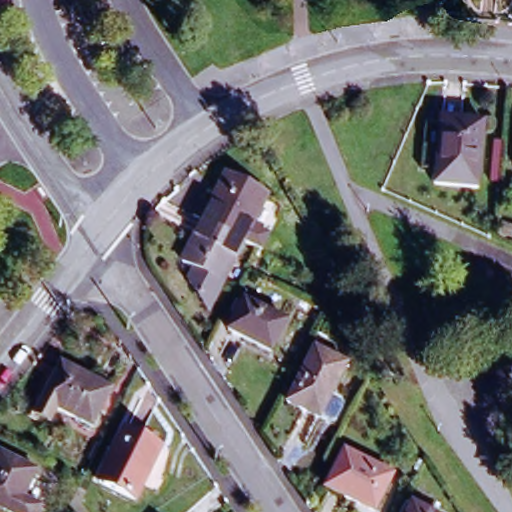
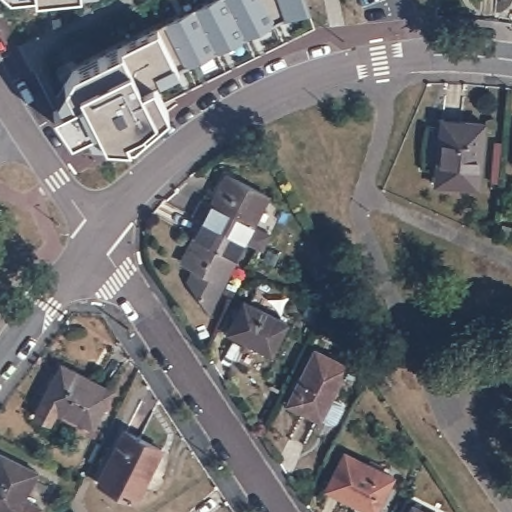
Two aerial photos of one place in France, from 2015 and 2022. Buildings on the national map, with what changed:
new [(284,16),(274,21),(178,69),(152,78),(168,110),(133,139),(128,138),(105,136),(97,120),(70,134),(54,109),(72,99),(63,83),(72,67),(122,44),(157,25),(208,0),(307,0),(310,9),(284,16)]
unchanged [(477,188),(435,183),(440,126),(441,119),(465,121),(482,123),(477,188)]
unchanged [(200,204),(211,210),(227,179),(267,199),(251,230),(268,239),(260,254),(243,246),(233,240),(203,225),(192,220),(200,204)]
unchanged [(235,261),(231,259),(220,282),(224,284),(216,300),(203,309),(187,287),(195,273),(182,267),(203,225),(233,240),(243,246),(235,261)]
unchanged [(270,358),(228,335),(243,305),(286,327),(270,358)]
unchanged [(319,419),(287,403),(314,349),(347,364),(319,419)]
unchanged [(33,416),(40,402),(60,364),(110,390),(92,428),(55,409),(49,423),(33,416)]
unchanged [(135,502),(98,483),(123,431),(161,449),(135,502)]
unchanged [(374,512),(372,512),(325,491),(343,454),(392,476),(374,512)]
unchanged [(41,512),(0,512),(0,458),(37,476),(23,503),(41,512)]
unchanged [(412,506),(425,512),(409,512),(412,506)]

